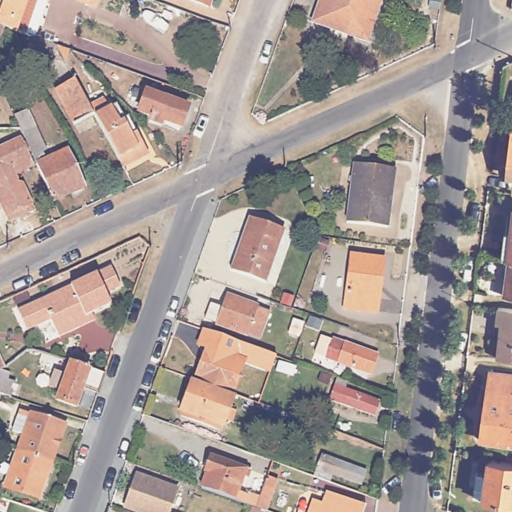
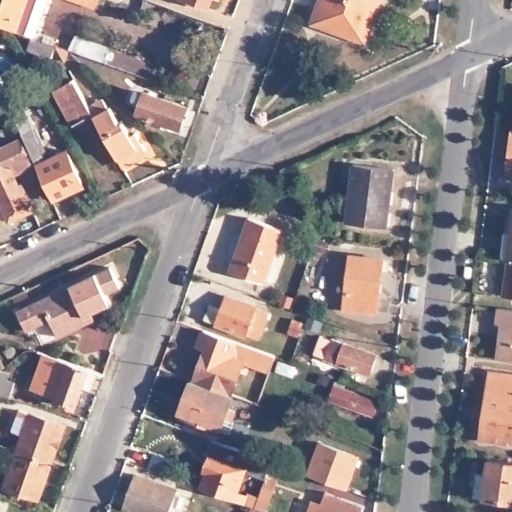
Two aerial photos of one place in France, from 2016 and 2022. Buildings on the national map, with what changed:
unchanged [(6,29),(0,26),(0,0),(28,0),(16,32),(6,29)]
unchanged [(188,0),(216,0),(213,9),(188,0)]
unchanged [(311,25),(320,0),(382,0),(367,44),(311,25)]
unchanged [(55,49),(51,59),(27,51),(30,41),(55,49)]
unchanged [(75,122),(55,87),(73,76),(93,111),(75,122)]
unchanged [(187,107),(180,127),(163,122),(161,127),(148,122),(150,117),(139,113),(146,92),(187,107)]
unchanged [(114,102),(122,122),(129,119),(135,131),(141,128),(150,144),(122,157),(101,119),(99,120),(94,112),(114,102)]
unchanged [(27,106),(46,146),(31,152),(13,112),(27,106)]
unchanged [(506,179),(512,135),(512,179),(506,179)]
unchanged [(29,155),(32,162),(20,167),(14,170),(20,181),(21,180),(34,207),(26,211),(10,218),(6,211),(0,198),(0,190),(0,145),(20,136),(29,155)]
unchanged [(67,147),(84,182),(52,197),(45,181),(36,162),(67,147)]
unchanged [(395,169),(388,228),(347,222),(355,163),(395,169)]
unchanged [(232,272),(246,235),(248,235),(254,219),(285,231),(265,283),(232,272)]
unchanged [(508,257),(512,223),(512,257),(508,257)]
unchanged [(383,261),(377,313),(344,310),(350,257),(383,261)]
unchanged [(512,260),(512,297),(503,296),(507,260),(512,260)]
unchanged [(119,262),(129,282),(105,294),(111,306),(87,316),(90,322),(59,337),(50,319),(36,326),(26,305),(119,262)]
unchanged [(205,322),(210,305),(221,308),(226,296),(257,307),(247,336),(205,322)]
unchanged [(500,325),(494,324),(495,307),(512,309),(512,360),(501,359),(495,358),(500,325)]
unchanged [(376,356),(370,375),(313,355),(320,337),(376,356)]
unchanged [(207,347),(243,360),(240,368),(249,371),(245,382),(236,379),(231,395),(195,382),(207,347)]
unchanged [(14,372),(10,382),(15,384),(10,398),(0,395),(0,360),(5,370),(14,372)]
unchanged [(97,393),(82,388),(76,407),(57,401),(60,391),(50,387),(55,372),(66,376),(70,362),(105,374),(97,393)]
unchanged [(512,376),(512,443),(481,438),(490,372),(512,376)]
unchanged [(231,395),(226,407),(235,410),(230,422),(222,418),(219,428),(182,416),(195,382),(231,395)]
unchanged [(385,401),(380,416),(335,400),(339,385),(385,401)]
unchanged [(17,452),(25,432),(16,429),(22,411),(31,414),(64,425),(51,462),(35,457),(17,452)]
unchanged [(39,500),(5,489),(11,469),(6,467),(8,462),(14,463),(17,452),(35,457),(51,462),(39,500)]
unchanged [(366,471),(361,485),(332,475),(330,482),(318,478),(321,472),(316,469),(321,455),(366,471)]
unchanged [(207,473),(205,472),(210,456),(250,470),(247,477),(243,476),(238,491),(249,495),(245,505),(202,489),(207,473)]
unchanged [(475,475),(485,476),(488,457),(512,461),(512,505),(482,501),(472,500),(475,475)]
unchanged [(171,485),(164,508),(174,512),(144,512),(120,505),(132,472),(171,485)]
unchanged [(273,491),(266,512),(255,508),(263,487),(273,491)]
unchanged [(323,503),(332,507),(337,495),(366,505),(364,512),(321,512),(323,503)]

